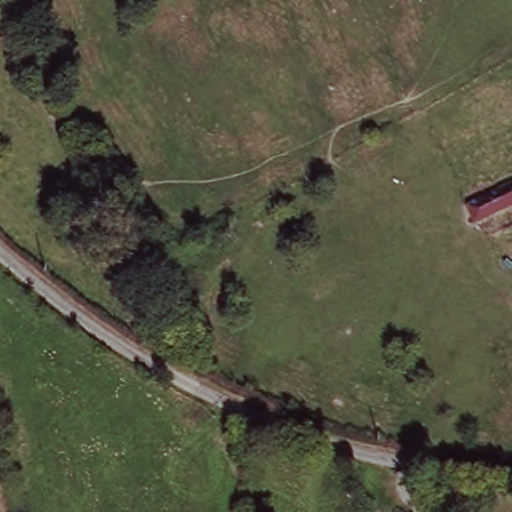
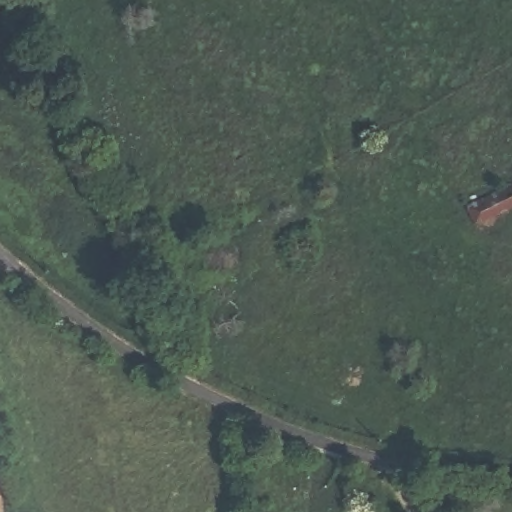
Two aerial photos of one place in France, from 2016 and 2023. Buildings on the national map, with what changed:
unchanged [(512,179),(512,210),(486,224),(473,202),(512,179)]

